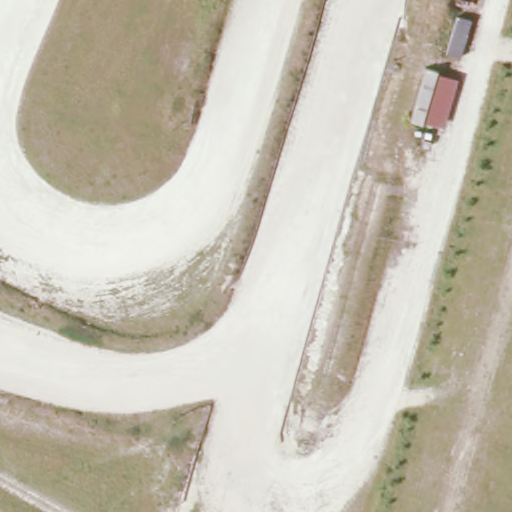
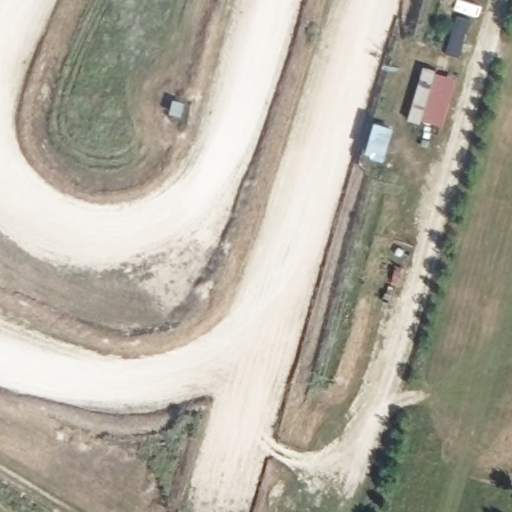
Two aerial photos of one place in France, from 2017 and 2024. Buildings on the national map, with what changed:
unchanged [(422,119),(420,123),(407,120),(424,65),(437,69),(437,72),(456,77),(444,124),(422,119)]

